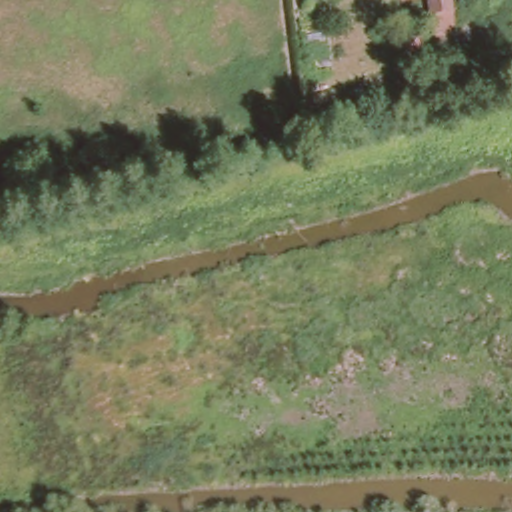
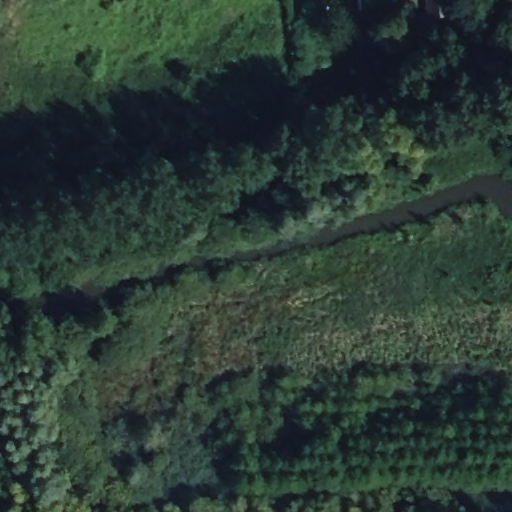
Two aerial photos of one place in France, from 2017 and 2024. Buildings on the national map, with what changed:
unchanged [(434,0),(451,0),(455,27),(437,30),(434,0)]

